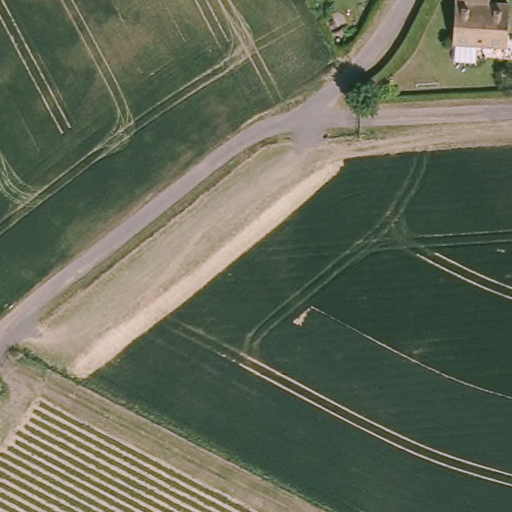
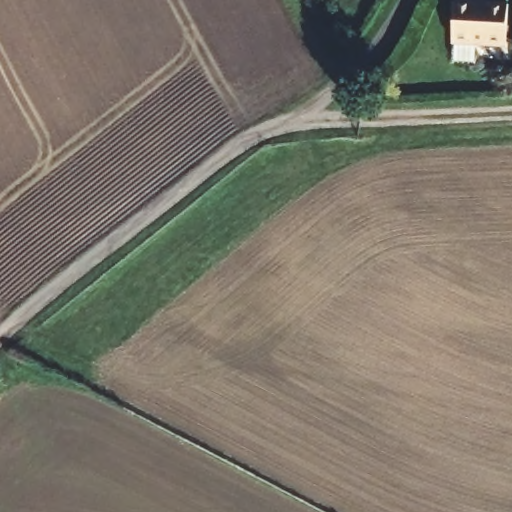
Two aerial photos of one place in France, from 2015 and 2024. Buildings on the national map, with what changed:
unchanged [(512,40),(480,36),(479,52),(455,50),(459,0),(512,0),(512,40)]

